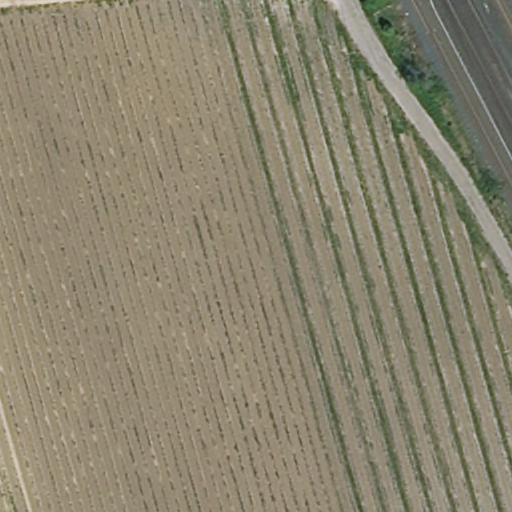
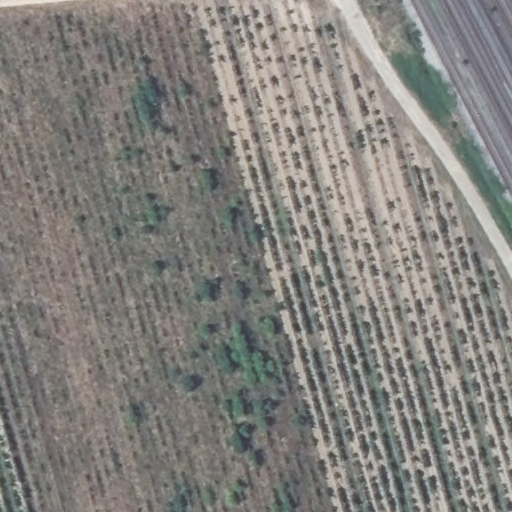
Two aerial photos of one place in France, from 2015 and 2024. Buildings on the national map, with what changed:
[]

